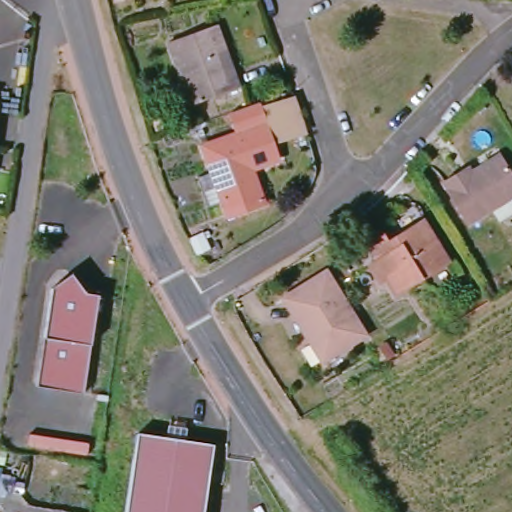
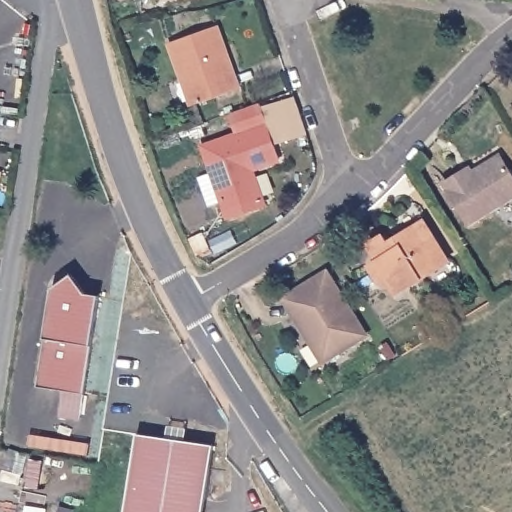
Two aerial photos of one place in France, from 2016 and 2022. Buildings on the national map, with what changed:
unchanged [(238,91),(188,110),(163,44),(211,27),(238,91)]
unchanged [(223,221),(220,214),(197,145),(191,125),(256,102),(258,108),(282,99),(285,106),(294,136),(293,136),(270,145),(275,162),(250,171),(258,201),(261,208),(223,221)]
unchanged [(454,172),(458,178),(494,154),(512,183),(512,203),(462,233),(435,186),(454,172)]
unchanged [(381,233),(388,243),(424,221),(449,263),(394,296),(385,281),(378,285),(365,263),(373,257),(365,243),(381,233)]
unchanged [(60,287),(83,268),(97,289),(97,293),(109,295),(93,394),(45,387),(60,287)]
unchanged [(322,274),(360,337),(316,362),(280,298),(322,274)]
unchanged [(198,512),(120,512),(132,437),(208,449),(198,512)]

